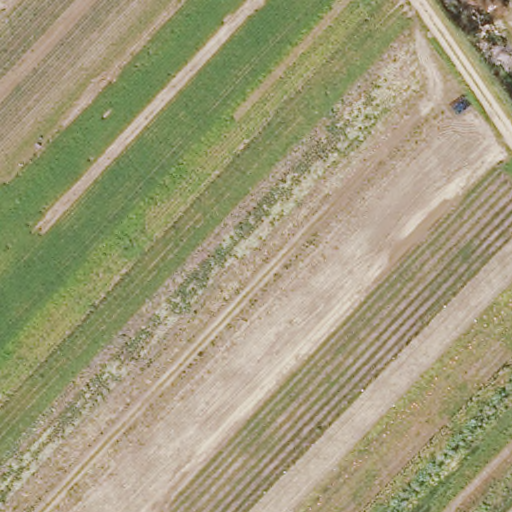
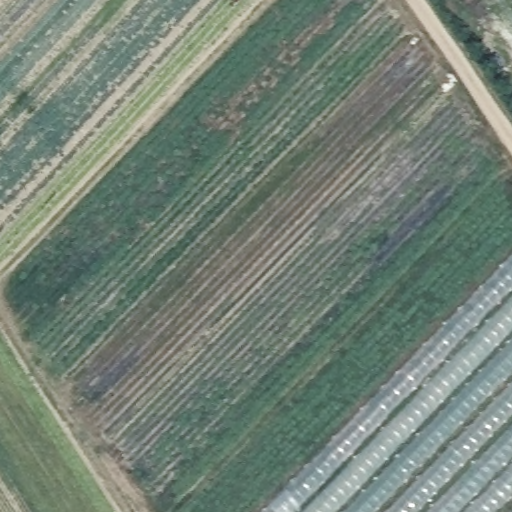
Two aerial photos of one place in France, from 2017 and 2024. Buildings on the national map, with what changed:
new [(512,257),(512,512),(263,512),(512,257)]

